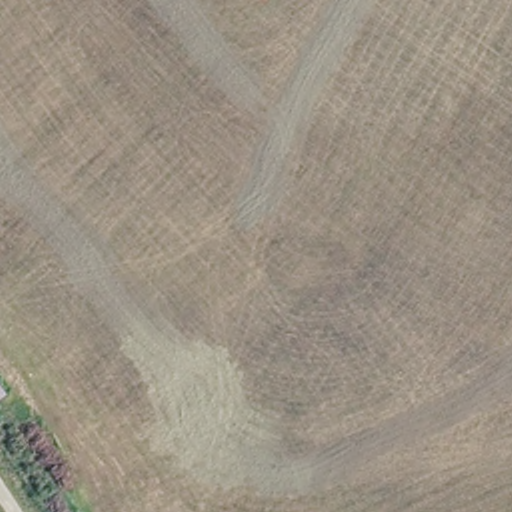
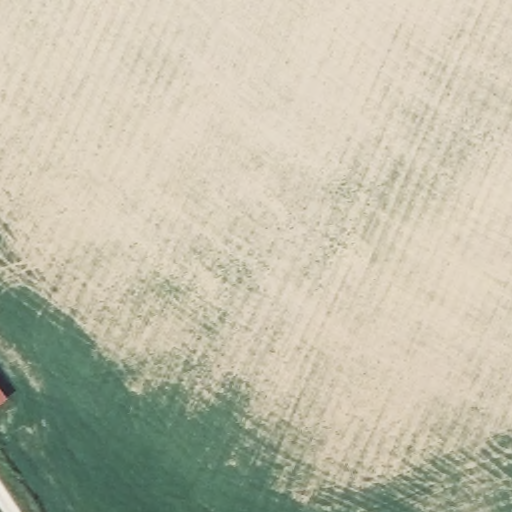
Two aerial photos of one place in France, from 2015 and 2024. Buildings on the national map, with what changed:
unchanged [(11,402),(0,410),(0,385),(11,402)]

